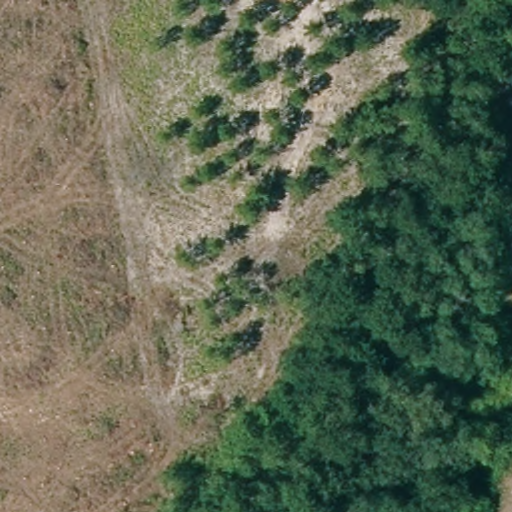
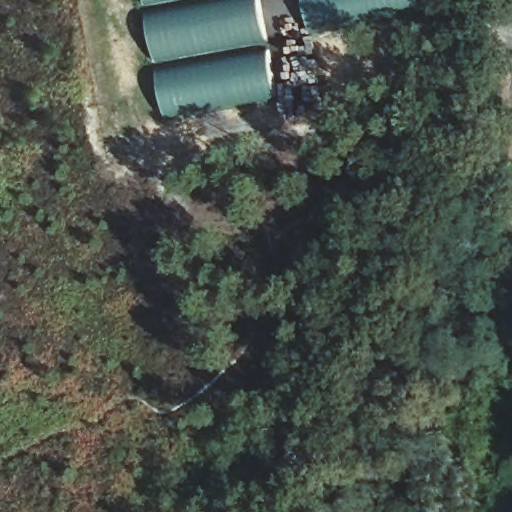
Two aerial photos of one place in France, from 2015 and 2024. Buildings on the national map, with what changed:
new [(266,44),(152,64),(142,7),(140,0),(179,0),(258,0),(266,44)]
new [(330,30),(307,35),(300,0),(416,0),(417,7),(330,30)]
new [(266,44),(275,100),(197,115),(164,120),(152,64),(266,44)]

